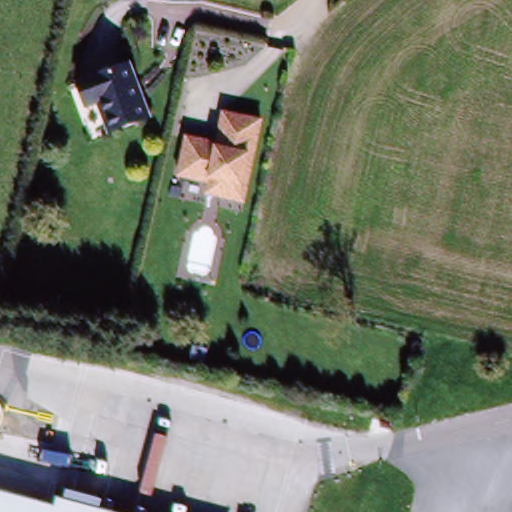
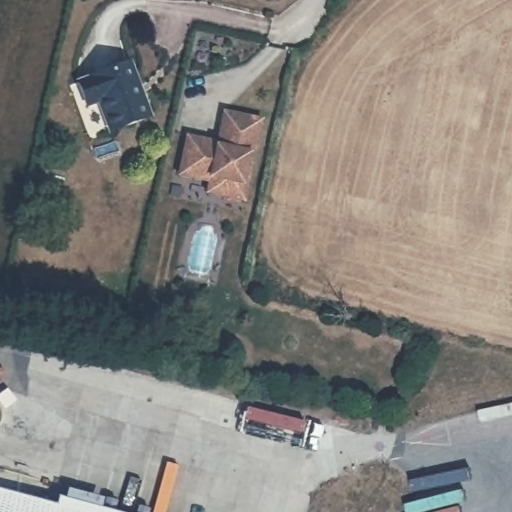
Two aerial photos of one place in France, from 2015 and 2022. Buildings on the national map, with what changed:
unchanged [(149,117),(109,131),(99,100),(86,104),(79,81),(130,63),(149,117)]
unchanged [(214,142),(214,145),(220,146),(227,113),(263,121),(246,203),(210,194),(212,183),(182,176),(190,137),(214,142)]
unchanged [(96,512),(0,512),(0,488),(96,512)]

